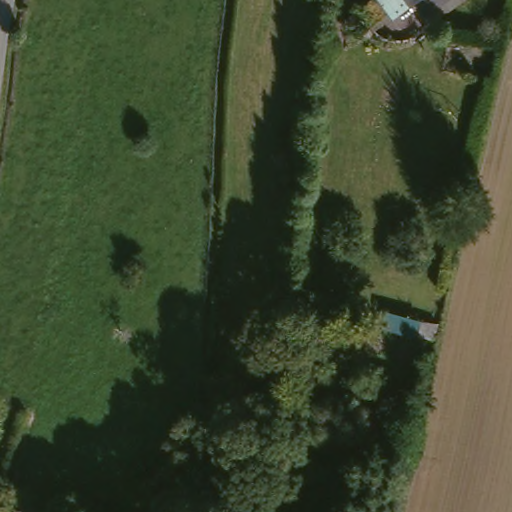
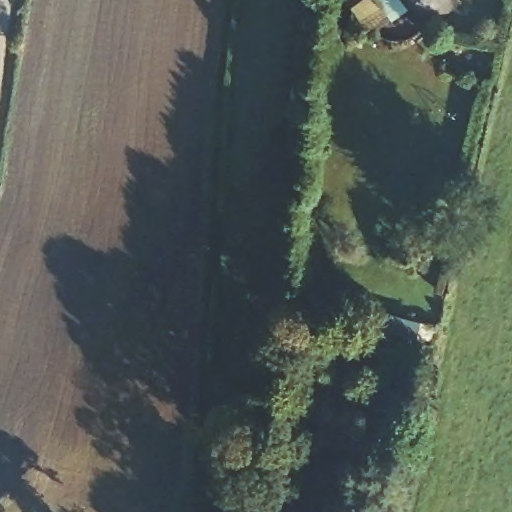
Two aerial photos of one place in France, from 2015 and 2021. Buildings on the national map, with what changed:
unchanged [(387,0),(427,0),(404,19),(387,0)]
unchanged [(424,335),(384,323),(390,307),(426,317),(444,321),(442,339),(424,335)]

